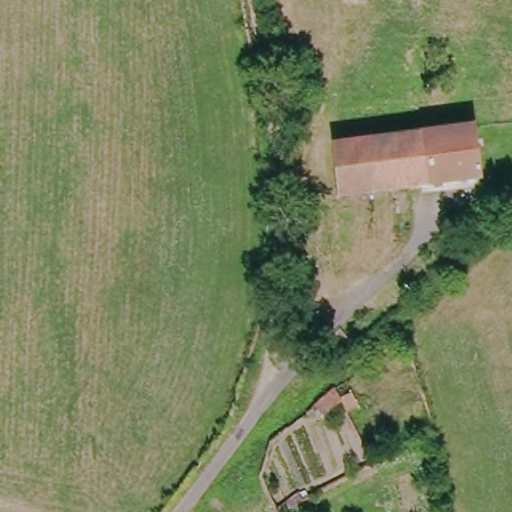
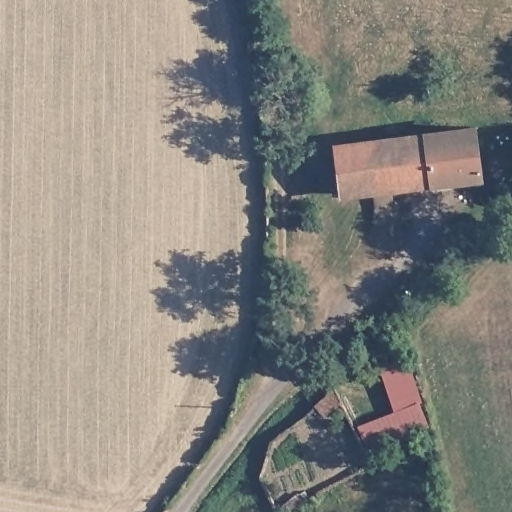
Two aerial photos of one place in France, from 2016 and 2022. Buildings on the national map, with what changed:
unchanged [(472,128),(479,180),(340,197),(333,144),(472,128)]
new [(418,403),(429,429),(367,454),(357,428),(395,412),(381,375),(409,365),(423,401),(418,403)]

